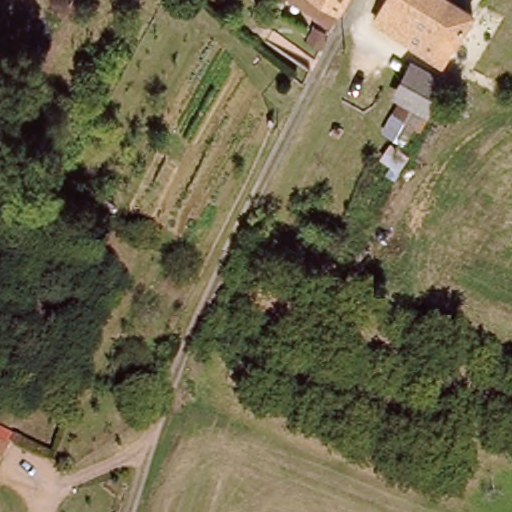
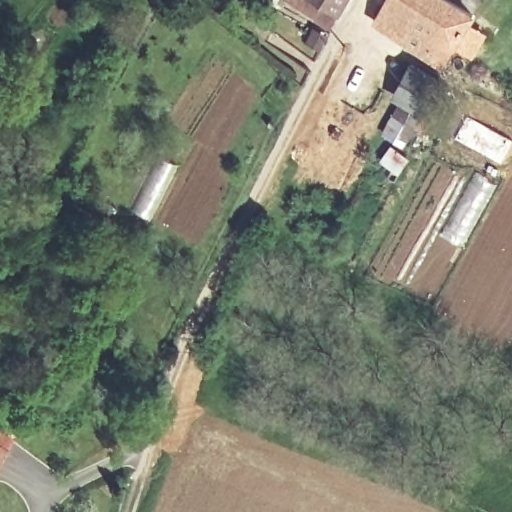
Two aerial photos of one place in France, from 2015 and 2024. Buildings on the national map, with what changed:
unchanged [(337,23),(301,0),(350,0),(337,23)]
unchanged [(441,6),(426,36),(452,51),(460,55),(450,72),(425,57),(375,28),(390,0),(428,0),(441,6)]
unchanged [(452,51),(426,36),(441,6),(428,0),(480,0),(452,51)]
unchanged [(419,128),(412,140),(388,128),(401,105),(391,99),(412,62),(448,80),(426,132),(419,128)]
unchanged [(4,450),(0,457),(0,449),(4,450)]

